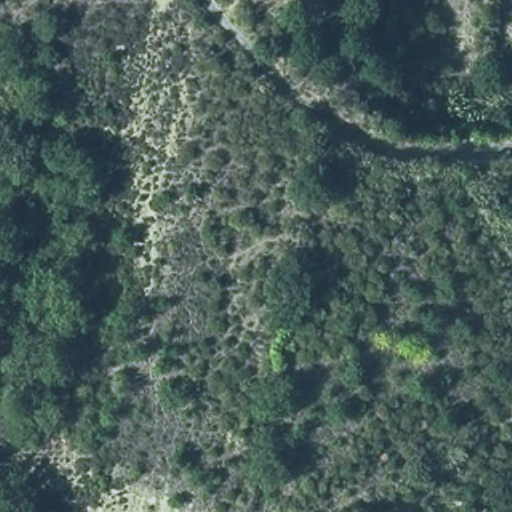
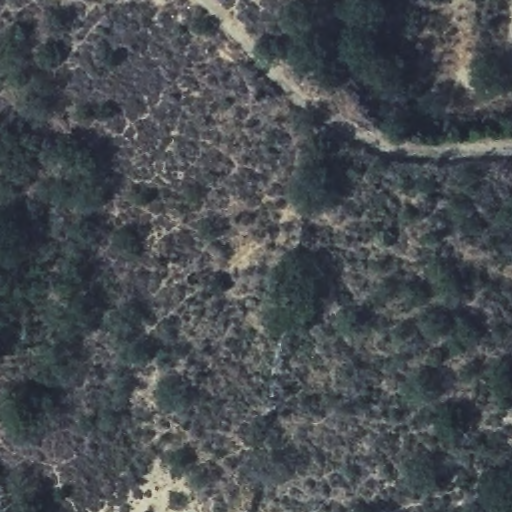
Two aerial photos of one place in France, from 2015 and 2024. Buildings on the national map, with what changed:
unchanged [(470,102),(481,104),(479,114),(464,114),(470,102)]

